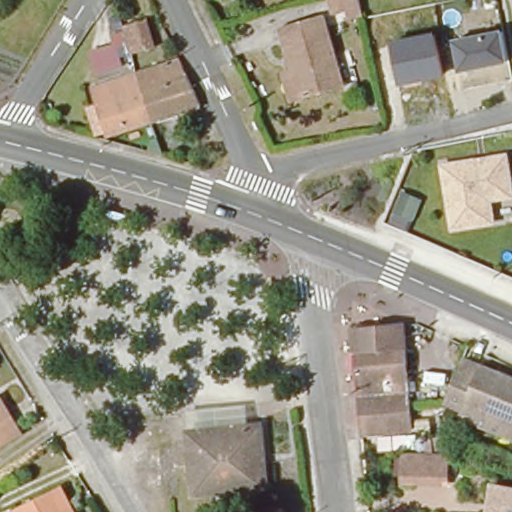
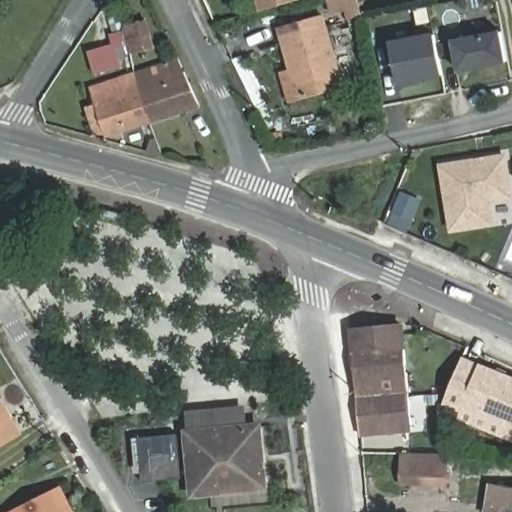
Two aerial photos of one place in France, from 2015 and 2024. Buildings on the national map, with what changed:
unchanged [(347,22),(345,13),(331,17),(326,0),(357,0),(361,18),(347,22)]
unchanged [(344,92),(301,105),(292,75),(280,32),(322,20),(323,20),(344,92)]
unchanged [(116,30),(142,24),(149,52),(124,59),(116,30)]
unchanged [(509,64),(459,74),(452,41),(503,30),(509,64)]
unchanged [(445,77),(399,86),(390,42),(435,32),(445,77)]
unchanged [(108,40),(117,39),(123,59),(113,61),(108,40)]
unchanged [(185,111),(151,122),(135,74),(178,60),(200,106),(185,111)]
unchanged [(135,74),(151,122),(106,136),(105,132),(96,105),(90,88),(135,74)]
unchanged [(508,159),(512,186),(512,195),(508,195),(487,200),(492,226),(457,232),(445,170),(508,159)]
unchanged [(400,192),(422,201),(409,231),(388,221),(400,192)]
unchanged [(403,327),(409,391),(413,430),(361,433),(352,331),(403,327)]
unchanged [(512,381),(512,437),(459,416),(460,413),(444,405),(463,361),(479,368),(479,367),(512,381)]
unchanged [(0,445),(0,401),(7,412),(2,416),(15,437),(0,445)]
unchanged [(218,492),(194,495),(188,433),(259,426),(264,478),(265,488),(218,492)]
new [(178,434),(182,478),(142,482),(138,437),(178,434)]
unchanged [(404,459),(444,460),(447,460),(447,482),(403,481),(404,459)]
unchanged [(498,510),(489,509),(493,486),(512,490),(512,512),(497,512),(498,510)]
unchanged [(61,490),(72,512),(18,512),(61,490)]

